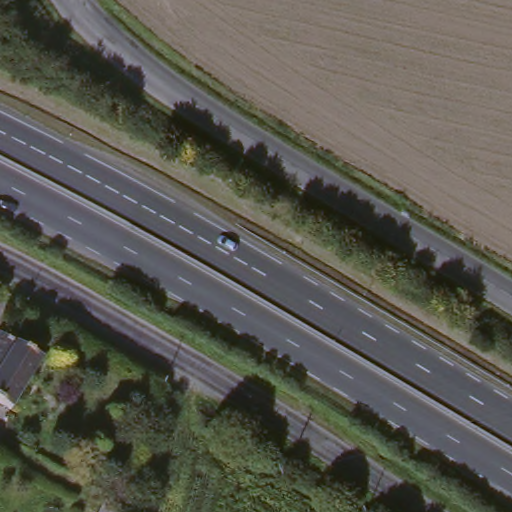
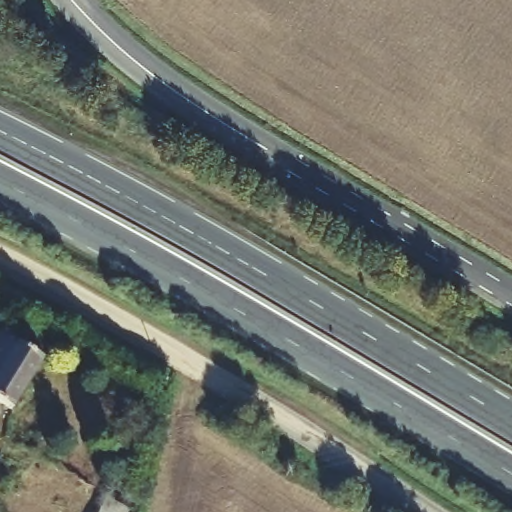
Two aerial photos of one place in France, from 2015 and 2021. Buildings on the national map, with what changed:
unchanged [(0,411),(0,341),(2,337),(37,357),(5,414),(0,411)]
unchanged [(111,503),(123,512),(106,512),(111,503)]

